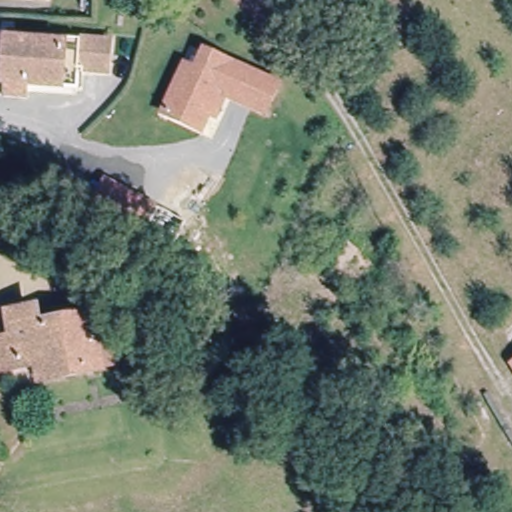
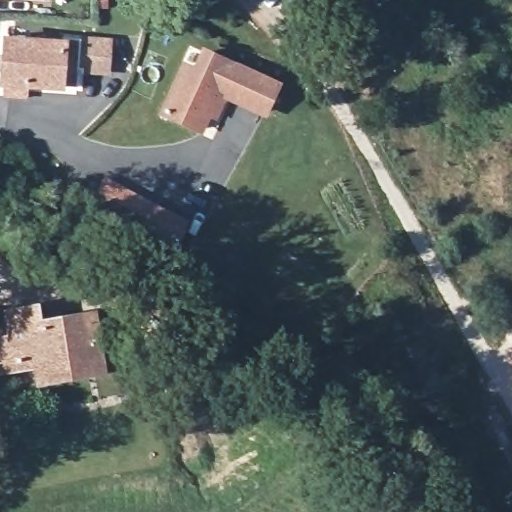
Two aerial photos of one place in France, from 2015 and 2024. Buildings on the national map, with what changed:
unchanged [(0,1),(0,0),(45,0),(45,1),(0,1)]
unchanged [(71,87),(21,88),(21,102),(1,102),(0,46),(54,45),(53,40),(84,40),(100,40),(100,70),(84,70),(70,70),(71,87)]
unchanged [(206,110),(200,128),(162,115),(178,66),(190,70),(196,51),(251,70),(271,76),(262,104),(238,95),(222,90),(214,113),(206,110)]
unchanged [(145,240),(134,232),(98,207),(114,184),(150,207),(162,216),(145,240)]
unchanged [(7,337),(5,321),(30,315),(32,330),(80,321),(84,342),(110,336),(115,365),(36,380),(33,361),(9,365),(10,372),(0,375),(0,339),(7,337)]

